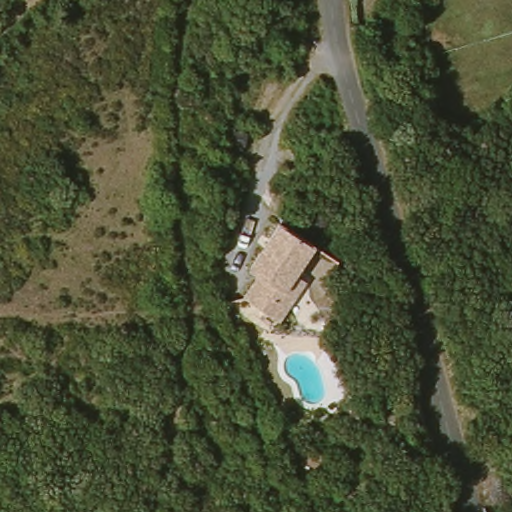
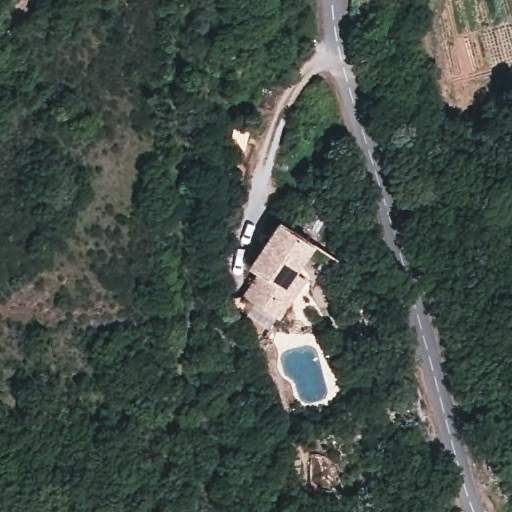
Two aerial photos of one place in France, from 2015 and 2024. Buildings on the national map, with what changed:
unchanged [(251,274),(244,270),(271,219),(310,239),(292,277),(301,284),(282,321),(239,298),(251,274)]

